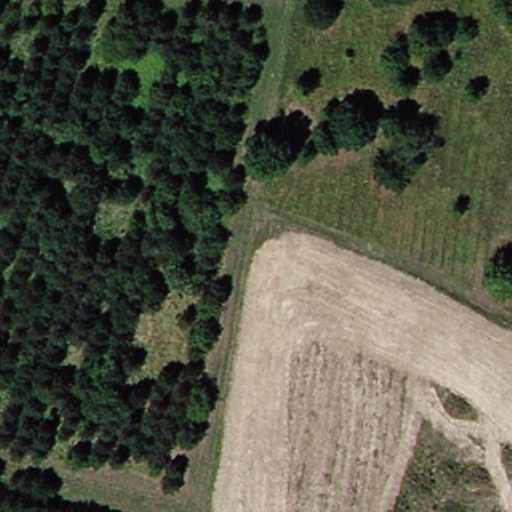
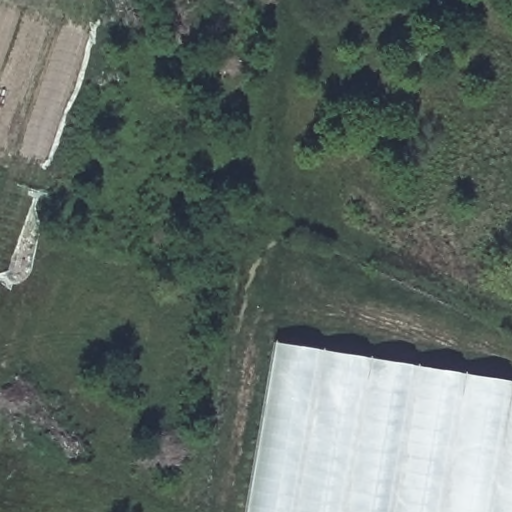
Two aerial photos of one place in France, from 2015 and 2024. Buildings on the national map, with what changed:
new [(512,383),(512,512),(242,512),(270,342),(512,383)]

